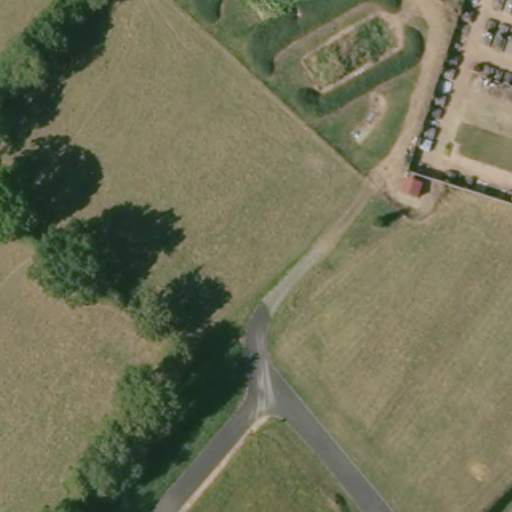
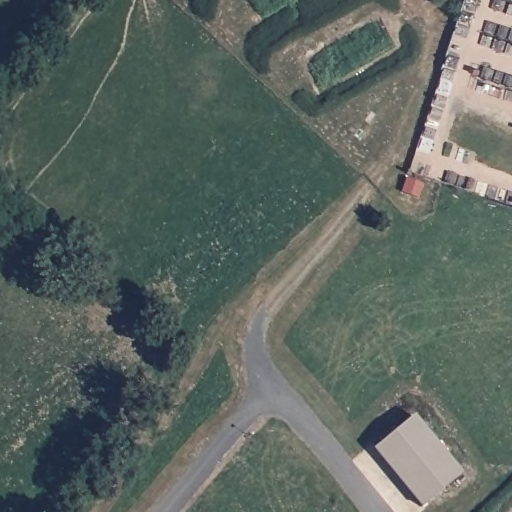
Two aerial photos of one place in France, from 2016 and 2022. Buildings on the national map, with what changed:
new [(413,416),(461,472),(421,506),(372,450),(413,416)]

